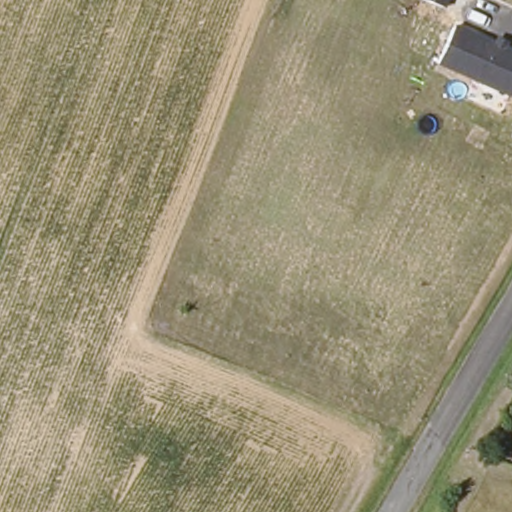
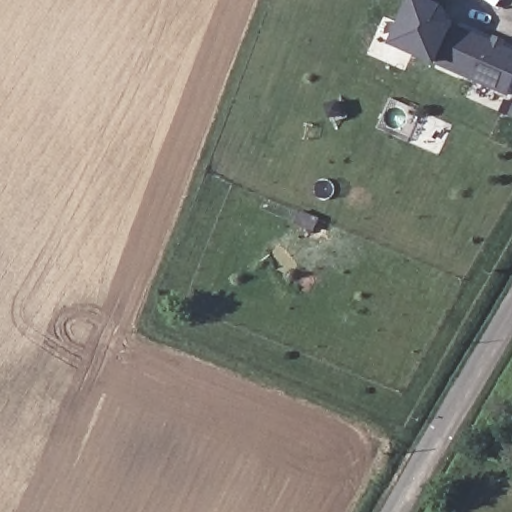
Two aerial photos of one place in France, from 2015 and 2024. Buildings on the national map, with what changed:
new [(413,0),(424,0),(445,8),(454,26),(437,65),(392,45),(413,0)]
unchanged [(424,0),(448,0),(445,8),(424,0)]
unchanged [(506,47),(512,49),(512,91),(510,96),(437,65),(454,26),(493,41),(496,36),(508,41),(506,47)]

